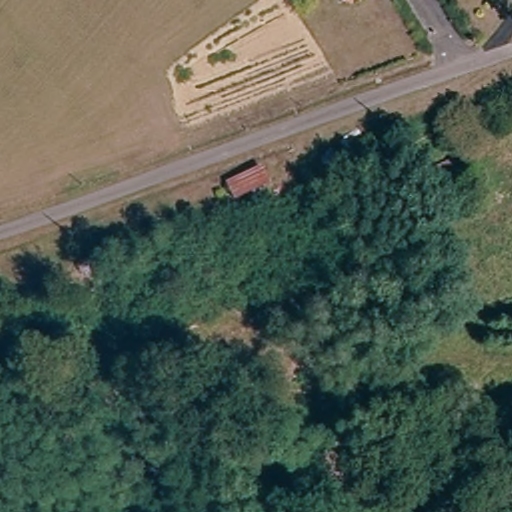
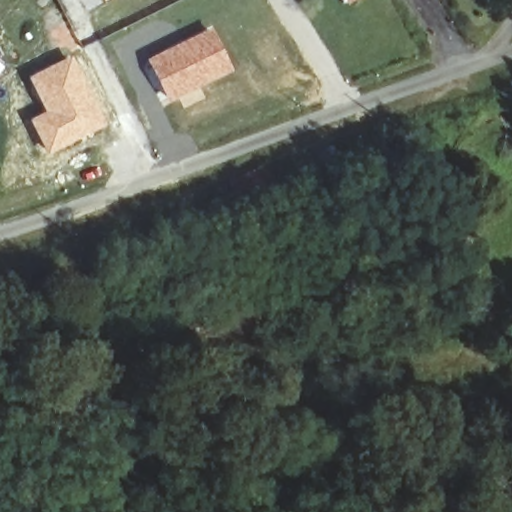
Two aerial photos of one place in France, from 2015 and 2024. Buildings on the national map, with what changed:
unchanged [(352,10),(345,0),(367,0),(352,10)]
new [(213,25),(234,70),(167,103),(145,59),(213,25)]
new [(76,53),(114,120),(47,155),(28,119),(43,111),(27,76),(76,53)]
new [(4,65),(0,71),(0,61),(4,65)]

